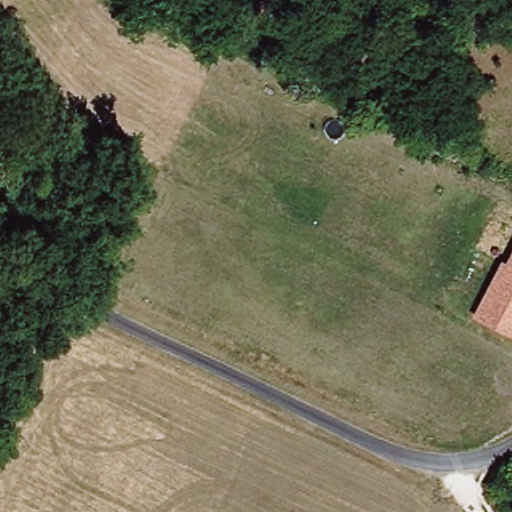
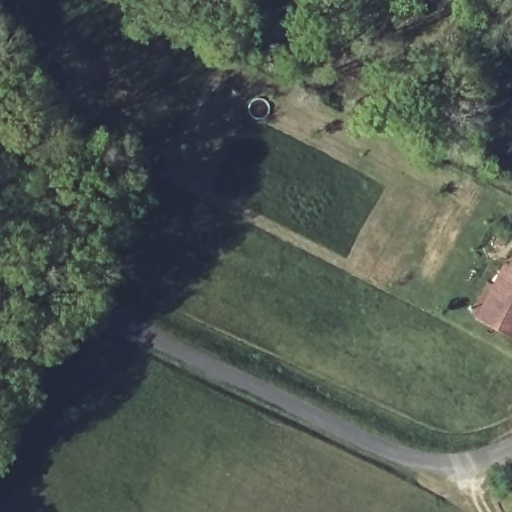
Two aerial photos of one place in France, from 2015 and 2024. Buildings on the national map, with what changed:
unchanged [(512,260),(512,337),(472,317),(501,261),(508,266),(512,260)]

